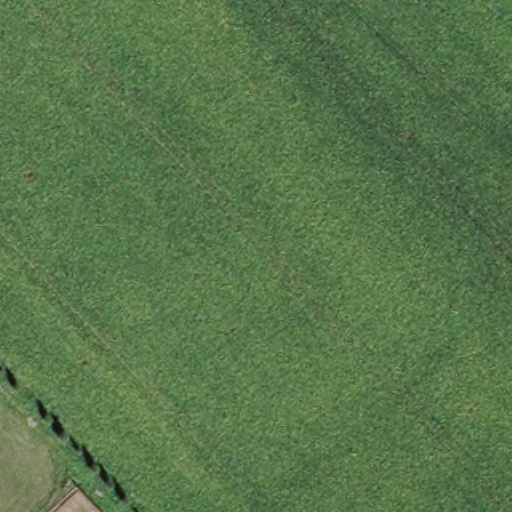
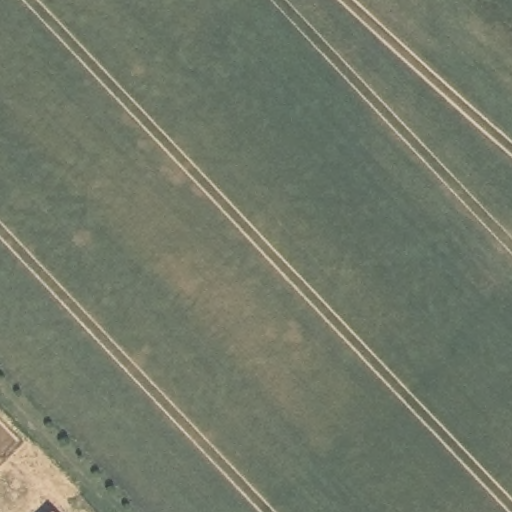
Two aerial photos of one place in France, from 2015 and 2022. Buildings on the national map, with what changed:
[]

